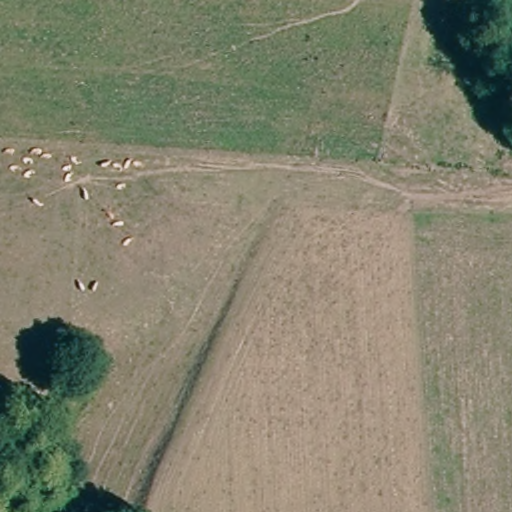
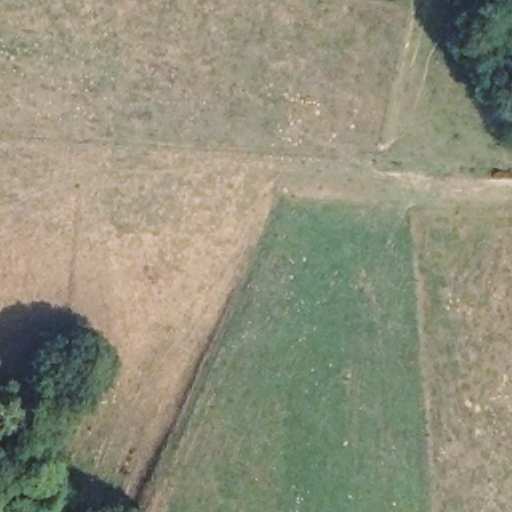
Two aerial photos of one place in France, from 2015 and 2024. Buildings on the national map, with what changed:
[]

